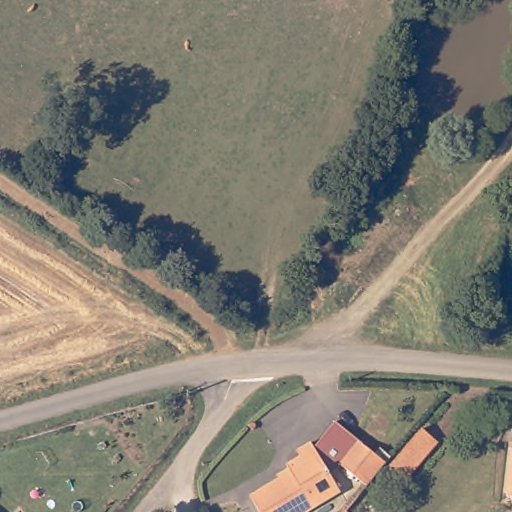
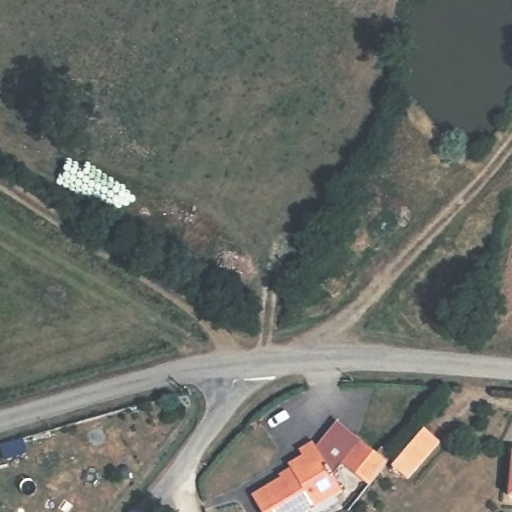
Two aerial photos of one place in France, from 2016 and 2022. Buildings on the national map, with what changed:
unchanged [(340,466),(331,477),(338,491),(306,512),(261,512),(252,496),(288,475),(284,467),(301,457),(297,450),(312,441),(315,447),(337,421),(386,463),(366,488),(340,466)]
unchanged [(408,449),(419,435),(435,447),(423,462),(398,491),(383,478),(408,449)]
unchanged [(508,492),(512,456),(512,493),(508,492)]

